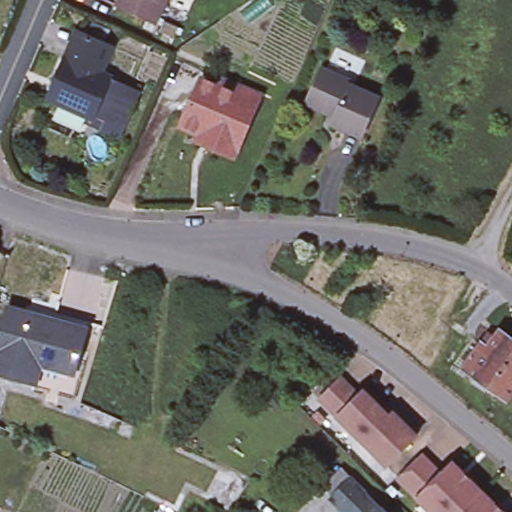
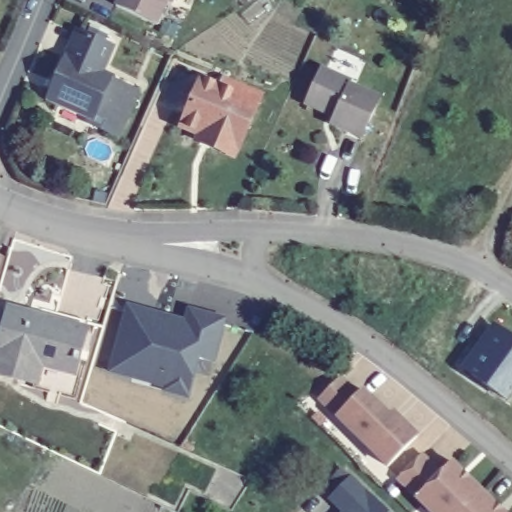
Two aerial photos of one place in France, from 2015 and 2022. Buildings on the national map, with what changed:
unchanged [(156,24),(115,6),(118,0),(166,0),(156,24)]
unchanged [(126,141),(120,139),(94,128),(96,122),(53,104),(54,102),(53,100),(53,95),(55,91),(57,86),(61,83),(70,64),(80,37),(86,39),(115,51),(105,77),(135,90),(145,94),(126,141)]
unchanged [(330,67),(355,78),(353,82),(383,95),(365,138),(335,124),(338,116),(308,103),(325,65),(330,67)]
unchanged [(199,135),(180,127),(200,80),(217,88),(221,80),(258,96),(252,111),(232,157),(211,148),(196,142),(199,135)]
unchanged [(30,376),(31,373),(0,363),(0,318),(5,299),(82,321),(75,348),(82,350),(71,388),(30,376)]
new [(215,364),(200,361),(190,400),(162,393),(163,388),(107,374),(126,303),(185,320),(187,307),(227,317),(215,364)]
unchanged [(495,336),(498,330),(512,340),(512,390),(505,400),(462,370),(488,332),(495,336)]
unchanged [(385,466),(317,399),(339,377),(357,394),(361,390),(387,415),(391,412),(397,418),(415,435),(385,466)]
unchanged [(420,454),(438,472),(445,465),(449,461),(468,480),(480,493),(492,504),(500,512),(429,512),(395,478),(420,454)]
unchanged [(329,494),(348,474),(364,489),(360,493),(376,509),(380,505),(388,512),(345,512),(346,511),(329,494)]

